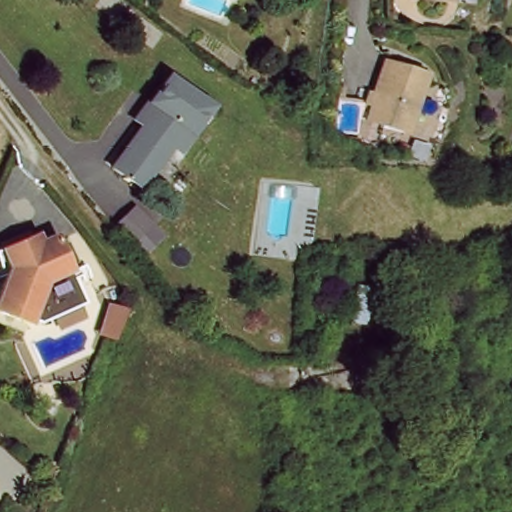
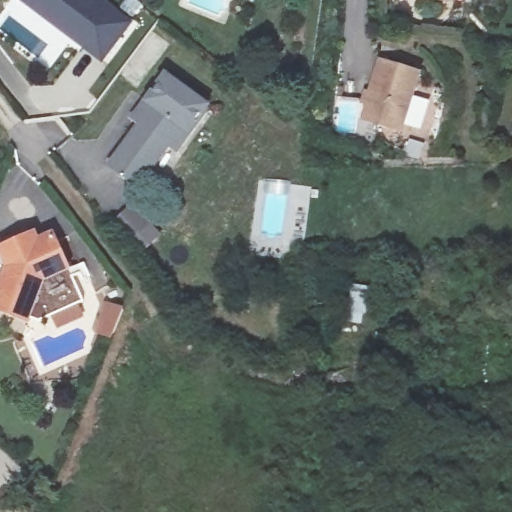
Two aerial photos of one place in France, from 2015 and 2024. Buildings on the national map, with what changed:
new [(103,64),(19,0),(105,0),(135,23),(103,64)]
unchanged [(398,133),(361,122),(376,66),(413,76),(398,133)]
unchanged [(208,113),(188,140),(179,132),(133,194),(109,175),(155,115),(145,106),(164,82),(208,113)]
new [(133,202),(162,233),(141,252),(112,222),(133,202)]
unchanged [(28,242),(47,233),(60,260),(34,275),(39,285),(26,321),(0,310),(0,277),(4,266),(0,257),(0,243),(22,232),(28,242)]
unchanged [(346,322),(353,282),(379,287),(369,326),(346,322)]
new [(103,301),(123,307),(111,340),(90,332),(103,301)]

